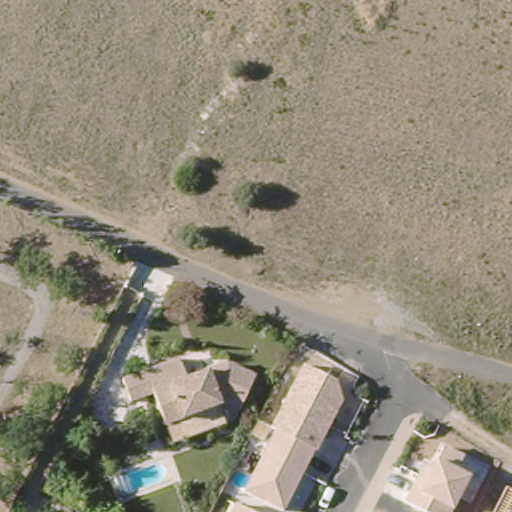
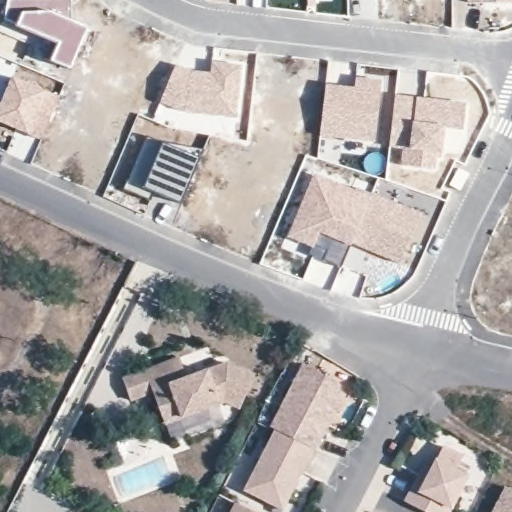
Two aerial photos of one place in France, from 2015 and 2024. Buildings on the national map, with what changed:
new [(70,0),(70,19),(89,28),(70,70),(49,61),(56,44),(25,31),(21,29),(2,20),(5,0),(70,0)]
new [(468,0),(512,0),(512,3),(468,3),(468,0)]
new [(174,64),(208,71),(213,49),(219,51),(218,57),(244,63),(238,119),(184,111),(158,103),(174,64)]
new [(326,80),(353,86),(354,74),(383,79),(374,144),(319,139),(326,80)]
new [(9,78),(10,75),(59,95),(39,141),(35,139),(14,130),(0,124),(0,99),(9,78)]
new [(394,93),(417,95),(469,99),(465,134),(448,131),(436,173),(403,167),(387,164),(394,93)]
new [(163,143),(204,150),(200,159),(181,204),(154,193),(151,200),(123,189),(148,136),(163,143)]
new [(286,238),(314,173),(424,213),(403,267),(349,248),(340,267),(334,265),(311,255),(313,249),(286,238)]
unchanged [(243,384),(229,410),(217,405),(161,424),(148,394),(125,402),(114,377),(168,359),(177,381),(216,368),(243,384)]
unchanged [(275,433),(270,429),(305,364),(336,381),(343,402),(314,451),(282,511),(244,492),(275,433)]
unchanged [(424,463),(432,467),(436,459),(444,443),(465,453),(458,469),(471,476),(454,510),(453,512),(424,512),(404,503),(424,463)]
unchanged [(507,488),(512,490),(512,512),(494,512),(507,488)]
unchanged [(237,504),(254,512),(233,512),(237,504)]

